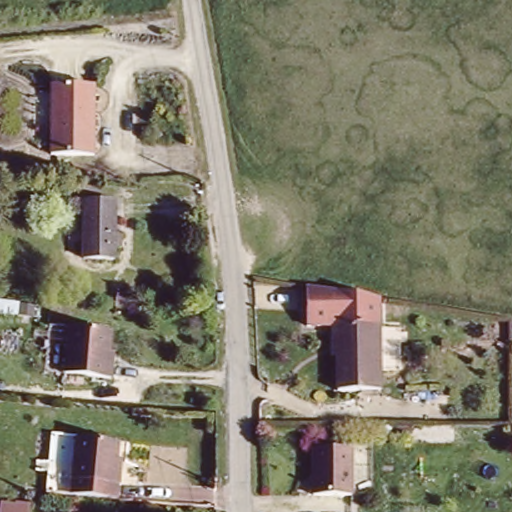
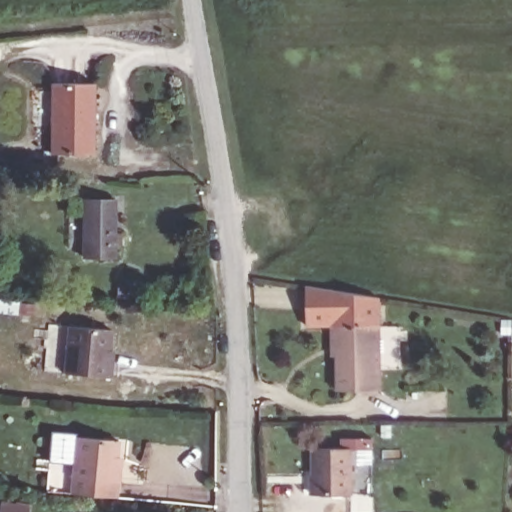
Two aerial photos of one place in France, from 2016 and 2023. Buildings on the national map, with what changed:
unchanged [(94,80),(93,150),(49,150),(50,79),(94,80)]
unchanged [(115,196),(119,257),(86,258),(82,198),(115,196)]
unchanged [(382,297),(384,320),(335,324),(307,324),(305,285),(382,297)]
unchanged [(109,326),(107,358),(112,357),(111,374),(64,372),(67,323),(109,326)]
unchanged [(383,392),(342,392),(342,368),(341,348),(335,348),(335,326),(382,326),(383,374),(383,392)]
unchanged [(72,488),(75,431),(118,433),(116,458),(120,458),(118,491),(72,488)]
unchanged [(347,446),(348,492),(309,492),(309,446),(347,446)]
unchanged [(17,502),(29,504),(28,512),(0,512),(1,503),(16,505),(17,502)]

